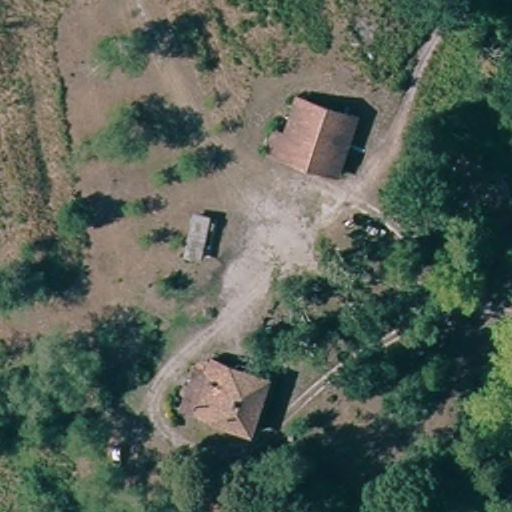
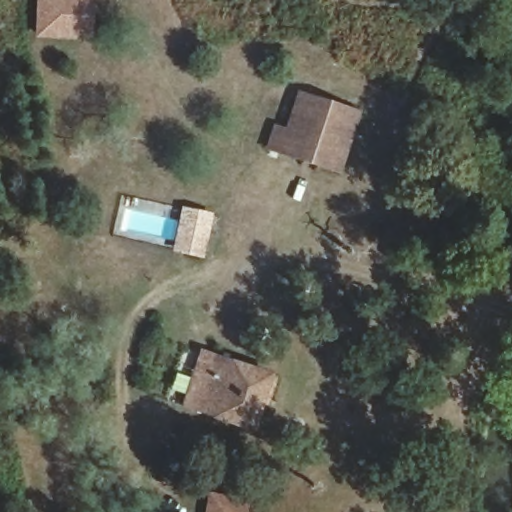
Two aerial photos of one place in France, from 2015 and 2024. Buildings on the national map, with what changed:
new [(38,0),(93,0),(91,39),(36,38),(38,0)]
demolished [(64,0),(115,15),(105,55),(56,38),(64,0)]
unchanged [(352,115),(331,170),(270,149),(279,122),(289,125),(299,96),(352,115)]
unchanged [(212,211),(200,262),(182,255),(191,207),(212,211)]
unchanged [(194,359),(205,361),(208,353),(275,372),(255,432),(179,406),(194,359)]
unchanged [(249,499),(249,512),(224,512),(224,499),(249,499)]

